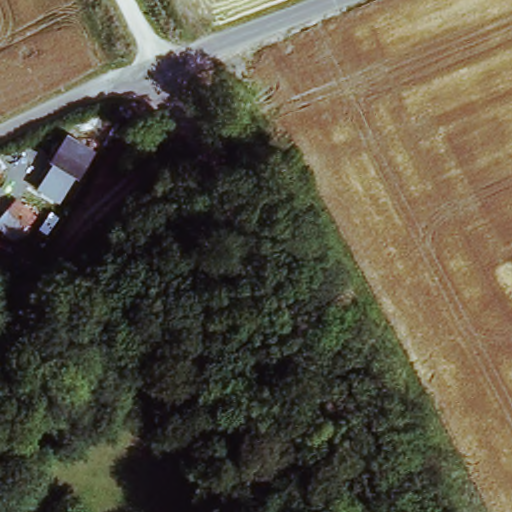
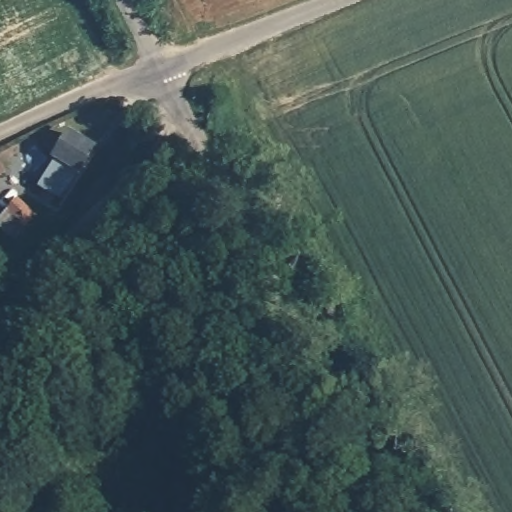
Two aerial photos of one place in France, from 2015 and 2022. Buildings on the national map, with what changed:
unchanged [(69,130),(95,147),(79,175),(48,156),(69,130)]
unchanged [(5,173),(0,177),(0,165),(5,173)]
unchanged [(17,194),(37,214),(22,229),(1,212),(17,194)]
unchanged [(0,282),(0,261),(12,273),(0,282)]

